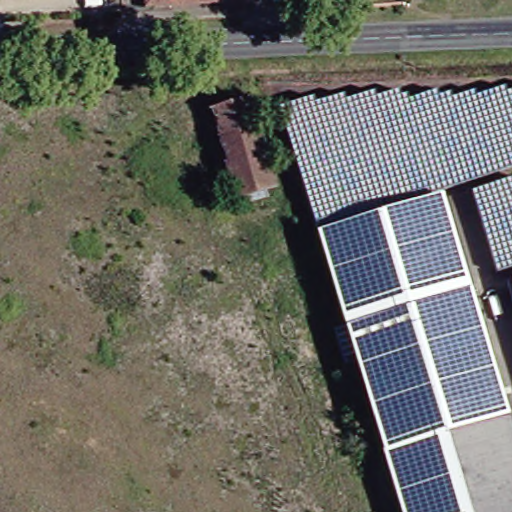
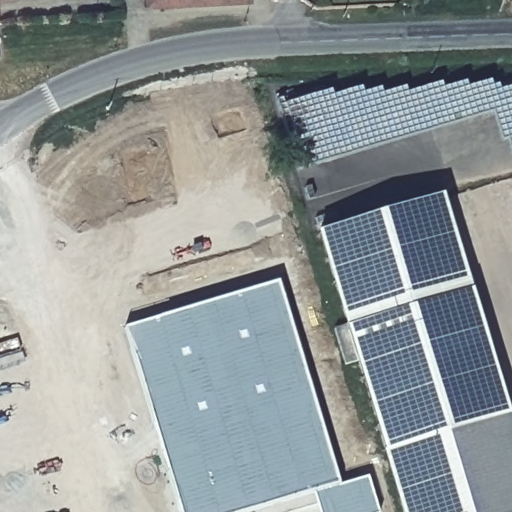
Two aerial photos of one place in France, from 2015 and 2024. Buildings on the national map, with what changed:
unchanged [(144,8),(144,0),(168,0),(168,6),(144,8)]
unchanged [(168,6),(168,0),(247,0),(248,5),(168,6)]
unchanged [(286,190),(247,201),(220,114),(260,103),(286,190)]
unchanged [(512,414),(512,512),(407,512),(322,233),(445,195),(512,414)]
new [(337,487),(367,478),(377,512),(319,512),(314,493),(246,512),(180,512),(125,329),(279,282),(337,487)]

